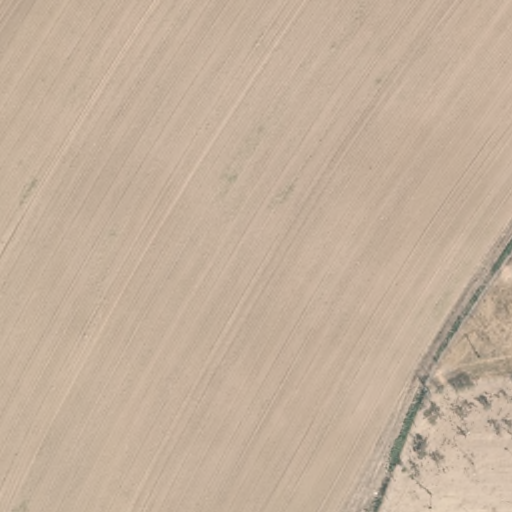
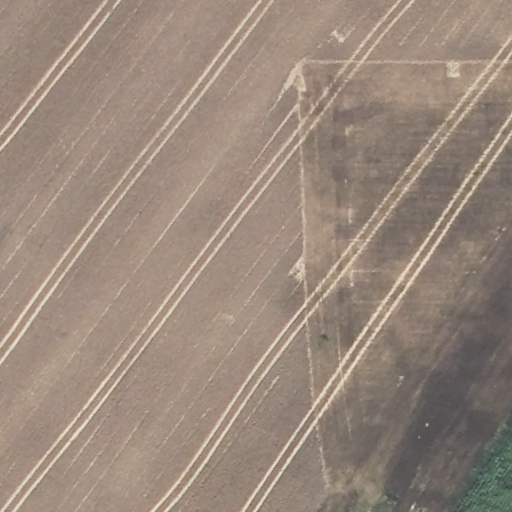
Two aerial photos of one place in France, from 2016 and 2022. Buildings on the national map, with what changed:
[]

